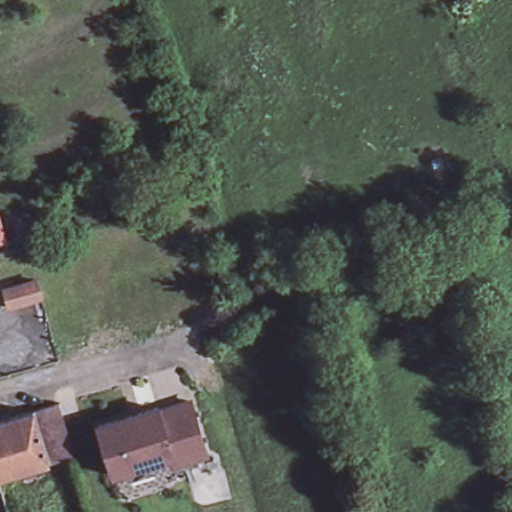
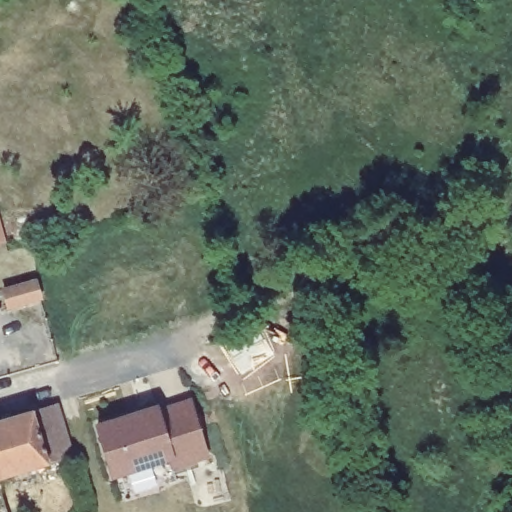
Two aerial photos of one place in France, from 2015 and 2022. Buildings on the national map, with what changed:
unchanged [(20,290),(40,285),(44,300),(24,305),(11,308),(8,293),(20,290)]
unchanged [(79,395),(87,420),(64,427),(72,455),(48,462),(33,410),(58,401),(79,395)]
unchanged [(191,400),(208,454),(188,460),(173,405),(191,400)]
unchanged [(173,465),(171,455),(113,474),(98,425),(157,406),(158,410),(173,405),(188,460),(173,465)]
unchanged [(48,462),(0,476),(0,419),(33,410),(48,462)]

